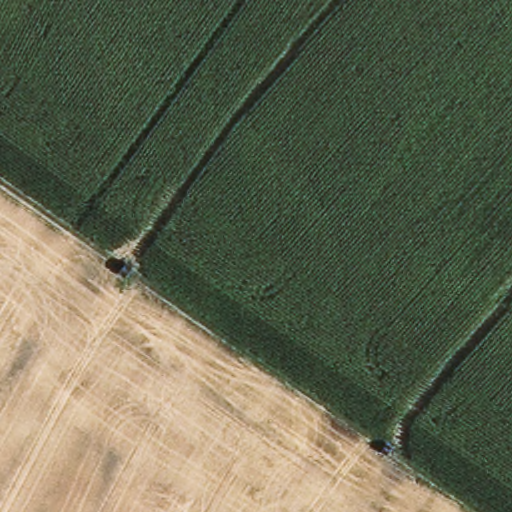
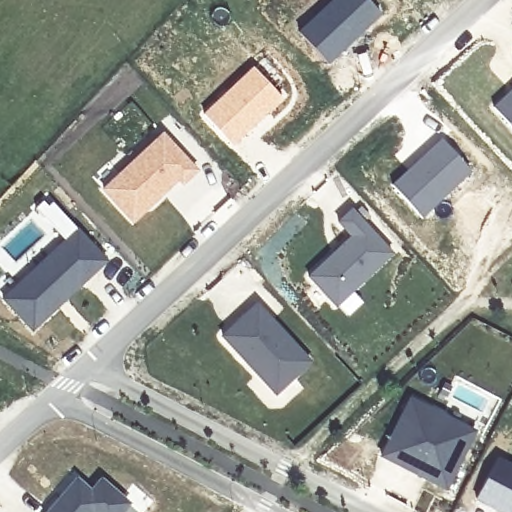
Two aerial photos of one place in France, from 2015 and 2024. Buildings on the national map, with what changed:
new [(330,0),(370,0),(382,12),(329,61),(298,30),(330,0)]
new [(252,65),(282,96),(234,145),(203,112),(252,65)]
new [(493,106),(512,89),(512,128),(493,106)]
new [(162,130),(198,170),(181,186),(176,182),(132,222),(100,189),(162,130)]
new [(441,136),(472,170),(422,215),(391,182),(441,136)]
new [(353,235),(340,221),(353,209),(394,252),(337,305),(310,275),(353,235)]
new [(66,240),(96,271),(33,330),(4,298),(66,240)]
new [(223,336),(257,304),(311,362),(276,393),(255,370),(243,357),(223,336)]
new [(458,422),(476,431),(464,455),(447,488),(382,456),(411,398),(458,422)]
new [(512,462),(512,512),(501,512),(474,500),(497,455),(512,462)]
new [(88,494),(99,481),(123,505),(117,512),(47,512),(74,481),(88,494)]

